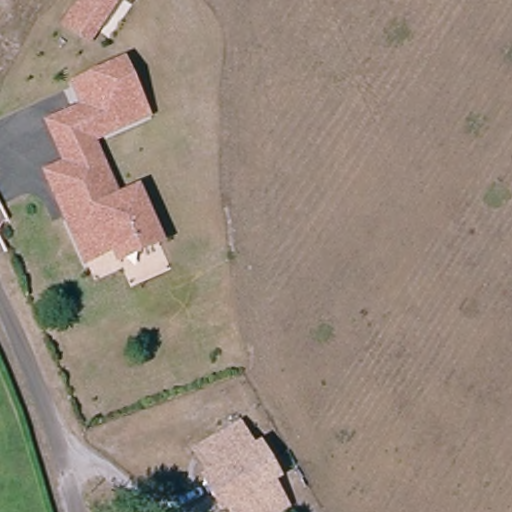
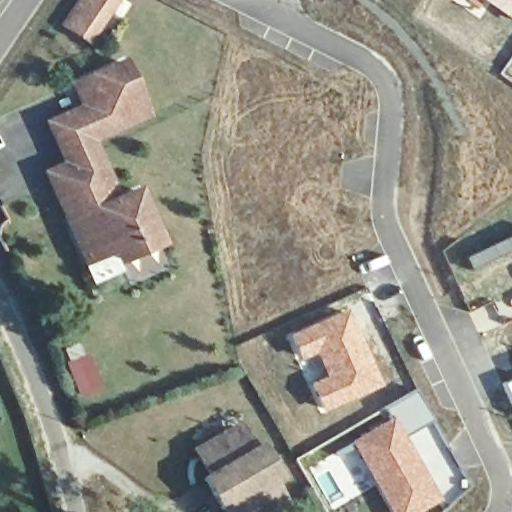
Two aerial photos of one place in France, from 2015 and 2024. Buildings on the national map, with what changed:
unchanged [(125,3),(103,37),(90,28),(82,41),(57,24),(73,0),(121,0),(125,3)]
new [(512,21),(481,0),(512,0),(512,21)]
unchanged [(135,119),(97,136),(89,115),(93,113),(85,96),(80,98),(74,84),(122,62),(137,95),(146,114),(135,119)]
unchanged [(50,122),(85,107),(80,98),(85,96),(93,113),(89,115),(97,136),(91,139),(97,152),(69,165),(50,122)]
unchanged [(122,261),(116,249),(89,262),(67,215),(56,190),(55,189),(55,186),(54,183),(54,181),(55,178),(55,175),(57,172),(59,170),(60,169),(61,168),(69,165),(97,152),(119,200),(139,191),(156,231),(162,242),(122,261)]
new [(347,308),(382,386),(322,414),(307,383),(322,376),(315,357),(300,364),(287,335),(347,308)]
new [(512,404),(503,386),(512,382),(512,404)]
new [(414,390),(431,421),(404,436),(390,417),(383,407),(414,390)]
new [(404,436),(441,501),(422,512),(389,512),(347,442),(390,417),(404,436)]
unchanged [(262,440),(285,478),(278,482),(292,506),(281,512),(225,512),(219,512),(199,476),(205,472),(188,445),(240,418),(255,442),(262,440)]
new [(431,421),(443,443),(441,445),(460,486),(441,501),(404,436),(431,421)]

